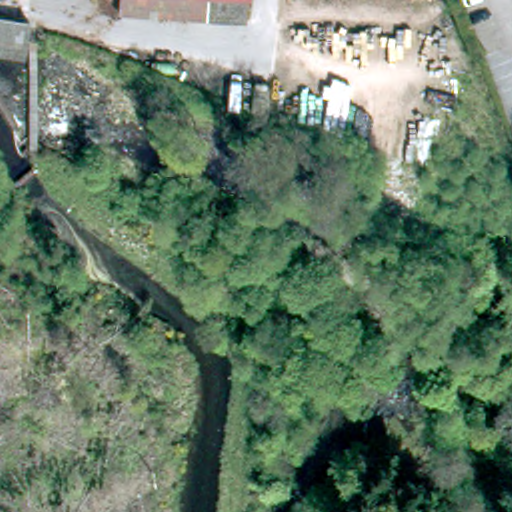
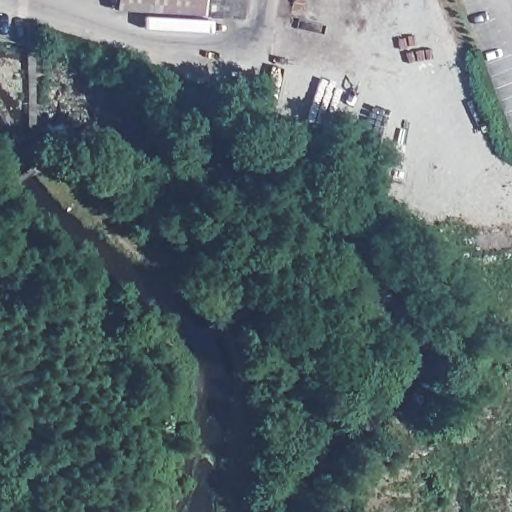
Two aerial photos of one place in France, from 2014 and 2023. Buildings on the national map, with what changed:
unchanged [(254,0),(253,17),(222,15),(223,0),(254,0)]
unchanged [(28,53),(27,63),(0,59),(0,27),(31,32),(28,53)]

